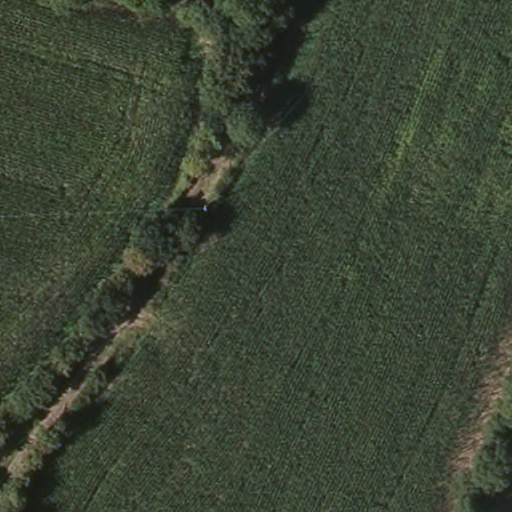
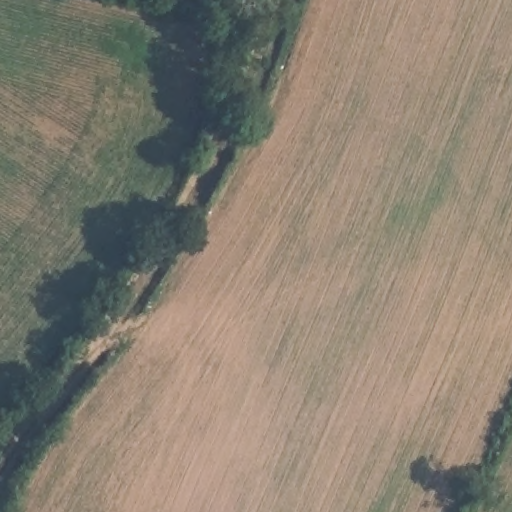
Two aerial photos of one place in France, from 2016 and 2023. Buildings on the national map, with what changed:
[]

